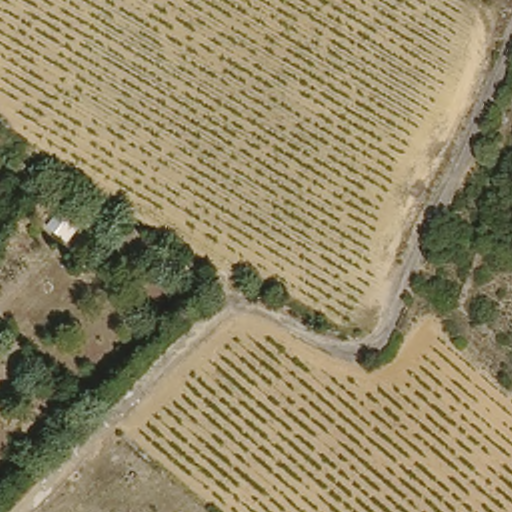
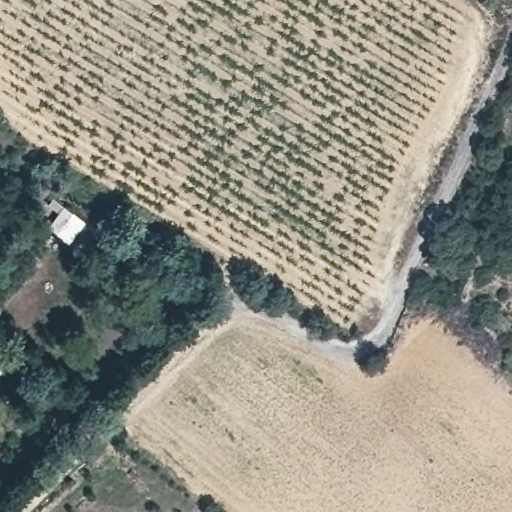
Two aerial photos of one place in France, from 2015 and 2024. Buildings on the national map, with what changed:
unchanged [(512,162),(511,164),(493,150),(500,138),(512,145),(512,162)]
unchanged [(50,203),(79,221),(62,245),(37,224),(50,203)]

